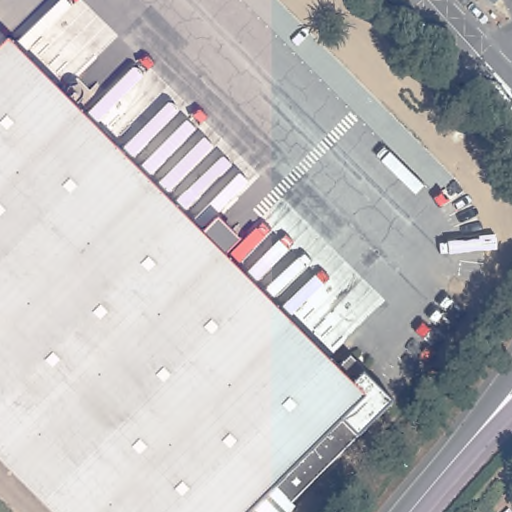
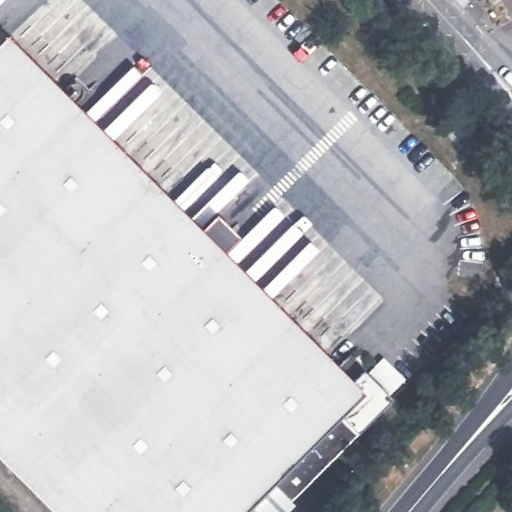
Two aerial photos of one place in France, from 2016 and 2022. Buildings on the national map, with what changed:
unchanged [(503,15),(491,1),(492,0),(504,0),(511,8),(503,15)]
unchanged [(1,31),(353,366),(366,379),(239,512),(65,512),(0,450),(0,31),(1,31)]
unchanged [(391,380),(291,484),(298,490),(277,512),(239,512),(366,379),(353,366),(363,355),(391,380)]

